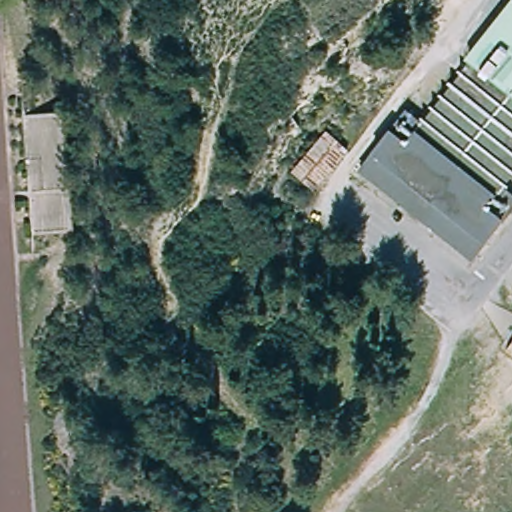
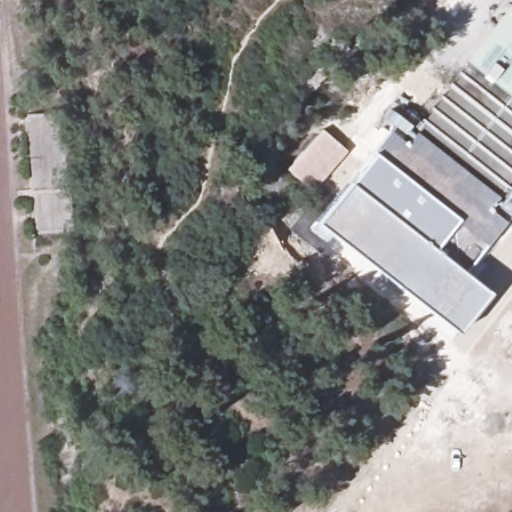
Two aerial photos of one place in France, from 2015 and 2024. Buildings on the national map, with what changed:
unchanged [(420,121),(512,7),(512,174),(501,187),(512,196),(512,213),(472,264),(357,173),(405,113),(420,121)]
unchanged [(24,111),(64,110),(71,230),(31,233),(24,111)]
unchanged [(324,127),(348,145),(313,190),(288,170),(324,127)]
new [(317,222),(349,182),(357,173),(442,240),(436,249),(489,291),(456,332),(317,222)]
unchanged [(512,355),(507,352),(512,346),(512,355)]

